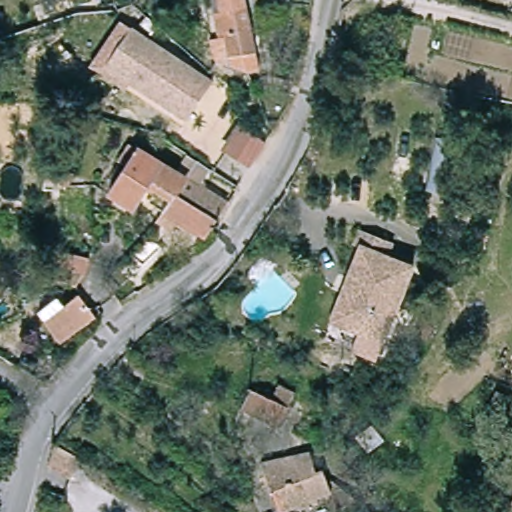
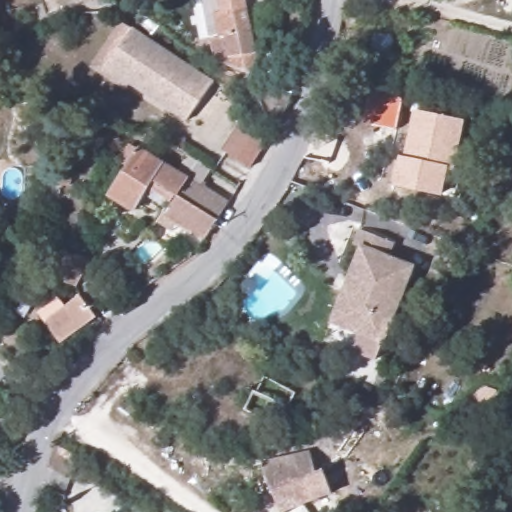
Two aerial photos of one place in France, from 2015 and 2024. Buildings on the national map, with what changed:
unchanged [(256,53),(260,70),(251,73),(233,67),(213,62),(211,52),(209,39),(217,37),(210,0),(245,0),(256,53)]
unchanged [(187,125),(131,87),(127,94),(92,71),(125,23),(135,30),(215,83),(187,125)]
new [(454,171),(448,169),(442,196),(391,184),(398,154),(403,156),(414,109),(465,120),(454,171)]
unchanged [(229,148),(245,122),(268,137),(253,163),(229,148)]
unchanged [(153,225),(159,215),(140,203),(131,215),(117,207),(96,194),(114,165),(99,156),(111,135),(225,205),(202,241),(175,224),(168,234),(153,225)]
unchanged [(396,247),(391,258),(418,269),(376,372),(351,362),(361,339),(330,326),(361,250),(354,247),(360,232),(396,247)]
unchanged [(86,260),(82,275),(79,275),(72,291),(51,282),(57,269),(61,253),(86,260)]
unchanged [(55,302),(62,309),(76,297),(95,319),(63,345),(38,315),(55,302)]
unchanged [(251,394),(271,403),(280,386),(295,392),(276,430),(242,413),(251,394)]
unchanged [(310,470),(317,470),(324,485),(330,483),(352,499),(335,512),(328,512),(322,496),(282,512),(276,512),(255,461),(305,451),(310,470)]

